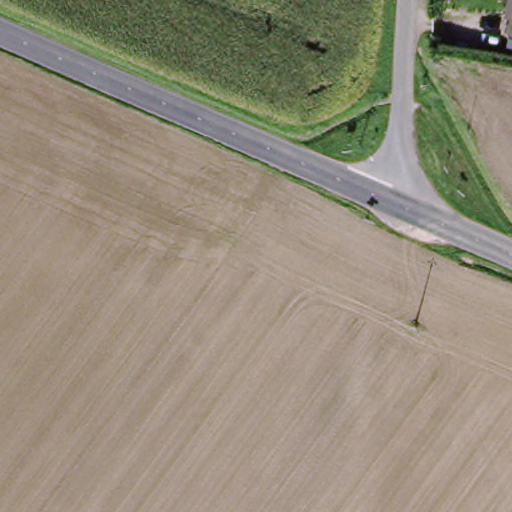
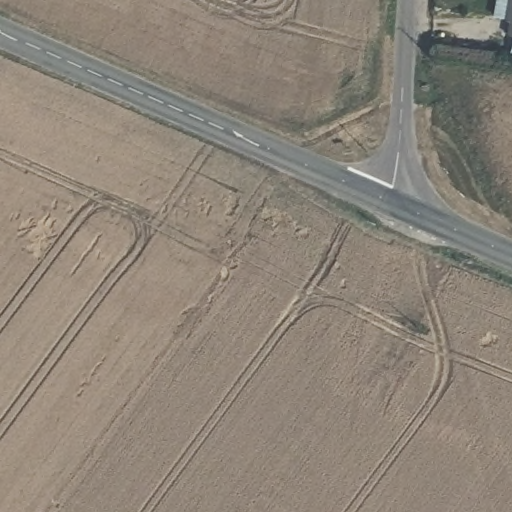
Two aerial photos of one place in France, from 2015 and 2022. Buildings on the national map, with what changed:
unchanged [(504,18),(495,16),(499,0),(507,0),(512,0),(512,33),(502,30),(504,18)]

